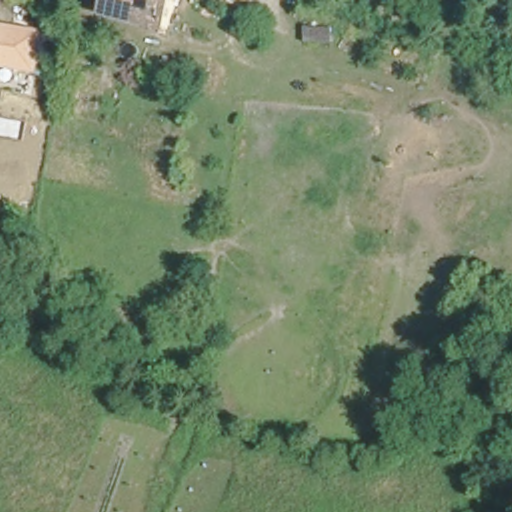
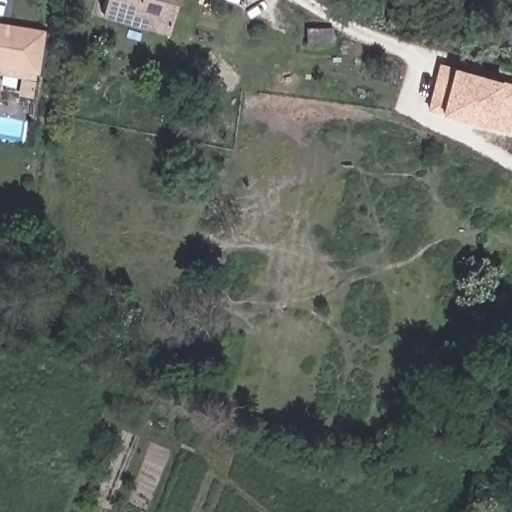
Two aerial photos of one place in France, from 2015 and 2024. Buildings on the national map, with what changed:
demolished [(102,0),(103,0),(177,0),(170,24),(102,0)]
unchanged [(0,58),(0,18),(33,23),(27,61),(0,58)]
unchanged [(308,36),(334,35),(335,50),(308,51),(308,36)]
new [(430,104),(440,66),(451,70),(452,66),(501,80),(505,85),(512,87),(512,118),(510,125),(495,121),(492,129),(440,115),(442,107),(430,104)]

